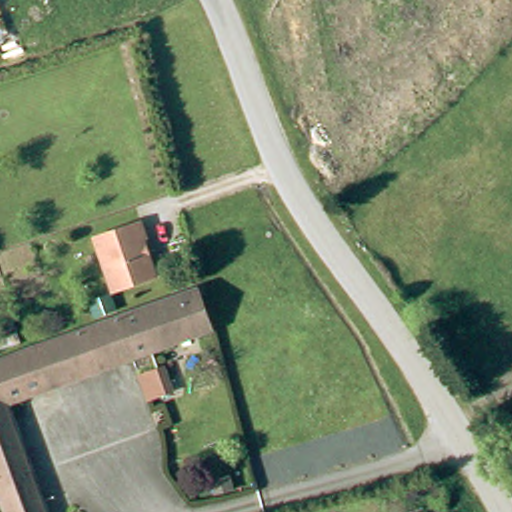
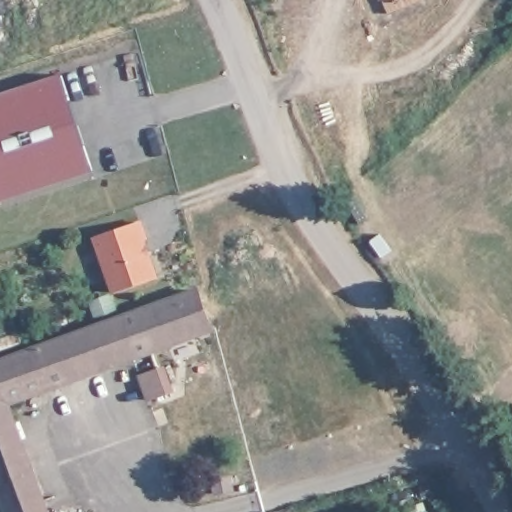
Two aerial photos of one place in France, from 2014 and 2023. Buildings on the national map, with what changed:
new [(94,171),(0,200),(0,92),(61,72),(94,171)]
unchanged [(91,241),(137,226),(144,244),(139,245),(152,282),(111,296),(91,241)]
unchanged [(0,498),(0,363),(58,345),(160,308),(200,292),(215,335),(6,406),(45,512),(5,512),(0,498)]
unchanged [(138,377),(162,369),(171,391),(147,400),(138,377)]

